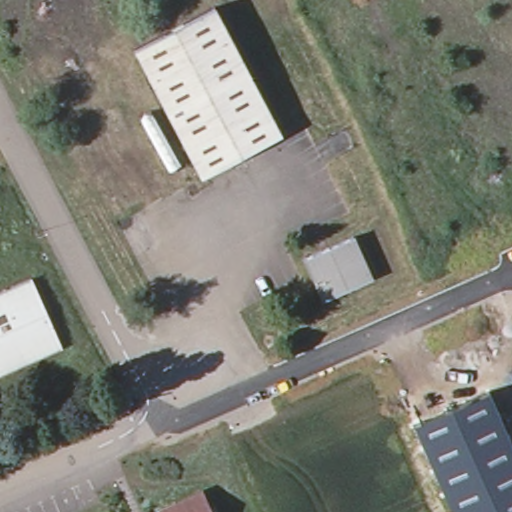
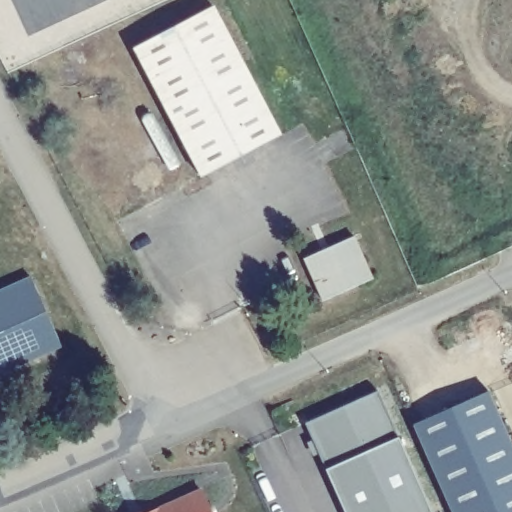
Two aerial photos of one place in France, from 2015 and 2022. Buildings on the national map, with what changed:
unchanged [(274,135),(186,175),(130,45),(215,6),(274,135)]
unchanged [(370,276),(320,300),(300,256),(350,233),(370,276)]
unchanged [(62,339),(0,368),(0,287),(29,273),(62,339)]
unchanged [(512,440),(512,512),(451,512),(412,423),(490,390),(512,440)]
new [(397,437),(430,512),(345,512),(326,468),(307,424),(378,391),(397,437)]
unchanged [(179,512),(199,503),(203,512),(179,512)]

